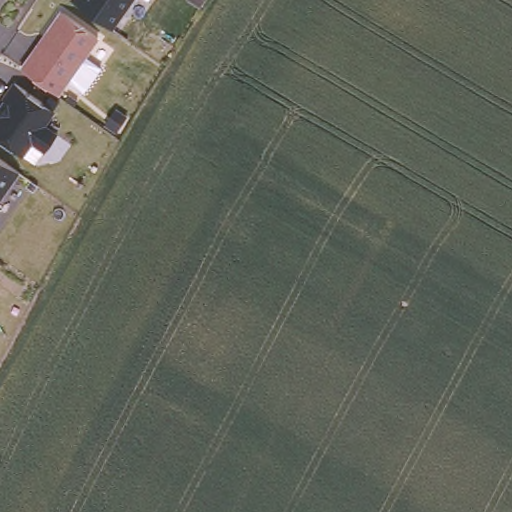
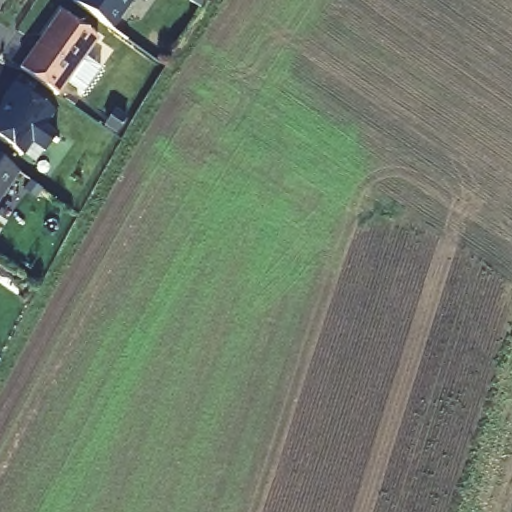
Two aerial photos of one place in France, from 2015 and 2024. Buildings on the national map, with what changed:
unchanged [(108,27),(94,17),(70,0),(128,0),(108,27)]
unchanged [(94,36),(53,93),(17,67),(58,10),(94,36)]
unchanged [(49,109),(39,123),(53,133),(41,149),(28,139),(18,154),(0,141),(0,102),(1,99),(0,98),(0,97),(11,81),(49,109)]
unchanged [(14,169),(0,189),(0,159),(14,169)]

